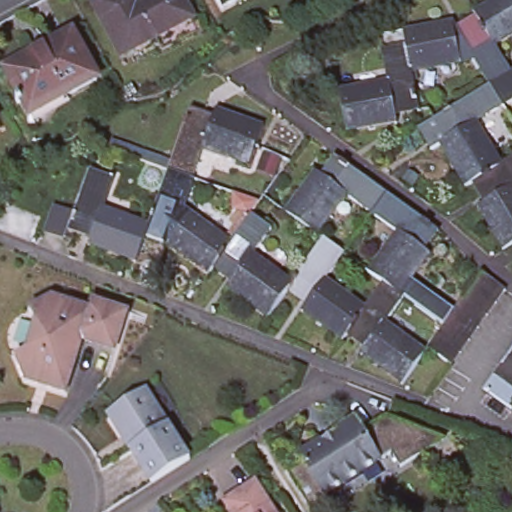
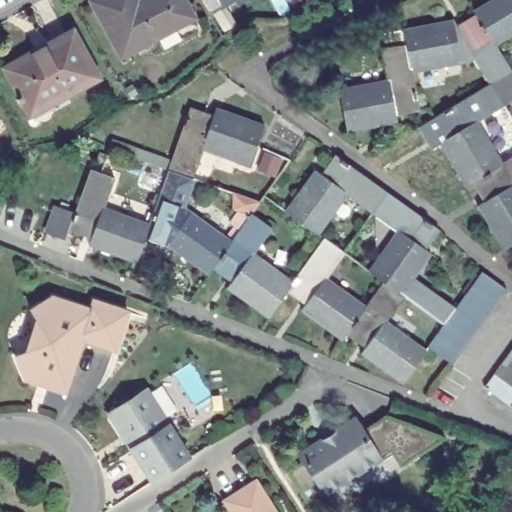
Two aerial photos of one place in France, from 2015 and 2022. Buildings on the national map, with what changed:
unchanged [(114,0),(147,0),(150,6),(161,0),(191,0),(201,17),(135,55),(106,4),(114,0)]
unchanged [(223,8),(219,0),(237,0),(223,8)]
unchanged [(241,2),(240,0),(245,0),(241,2)]
unchanged [(497,0),(512,0),(512,35),(497,43),(481,15),(478,11),(497,0)]
unchanged [(473,53),(415,66),(410,43),(408,31),(455,21),(460,28),(481,15),(497,43),(512,67),(512,68),(491,80),(473,53)]
unchanged [(76,30),(102,76),(37,112),(11,65),(76,30)]
unchanged [(398,109),(399,117),(352,128),(344,91),(393,80),(386,49),(410,43),(415,66),(422,106),(398,109)]
unchanged [(505,102),(491,80),(512,68),(512,98),(505,102)]
unchanged [(503,164),(477,179),(470,184),(444,139),(450,136),(435,114),(491,80),(505,102),(478,120),(503,164)]
unchanged [(386,193),(438,232),(425,251),(428,257),(403,292),(407,294),(386,321),(427,352),(402,384),(363,353),(366,350),(347,335),(343,340),(303,309),(307,304),(288,291),(268,317),(228,288),(232,282),(215,267),(210,274),(172,246),(172,239),(153,230),(177,180),(206,120),(228,130),(232,123),(275,144),(256,180),(214,159),(198,190),(187,214),(231,245),(248,220),(268,233),(252,257),(290,287),(321,246),(340,257),(328,274),(367,306),(385,281),(367,272),(397,234),(371,214),(346,196),(312,241),(278,223),(317,173),(321,177),(337,157),(386,193)]
unchanged [(481,204),(488,198),(477,179),(503,164),(512,159),(512,243),(506,246),(481,204)]
unchanged [(52,224),(62,202),(79,209),(100,169),(124,181),(109,210),(153,230),(136,264),(94,243),(96,237),(73,225),(68,232),(52,224)]
unchanged [(506,291),(497,303),(488,315),(480,326),(470,340),(461,352),(451,365),(427,348),(436,335),(445,322),(450,317),(455,310),(463,298),(472,285),(481,272),(506,291)]
unchanged [(91,307),(94,298),(127,308),(115,347),(84,337),(65,390),(26,376),(17,352),(27,348),(37,319),(31,308),(53,295),(91,307)]
unchanged [(498,368),(508,355),(512,350),(512,395),(490,380),(498,368)]
unchanged [(111,417),(114,408),(147,388),(190,456),(151,482),(130,447),(118,428),(111,417)]
unchanged [(304,446),(327,432),(340,423),(360,411),(367,423),(392,409),(448,434),(406,461),(397,447),(332,488),(341,501),(324,512),(323,512),(292,463),(308,453),(304,446)]
unchanged [(254,475),(277,512),(234,512),(223,495),(254,475)]

